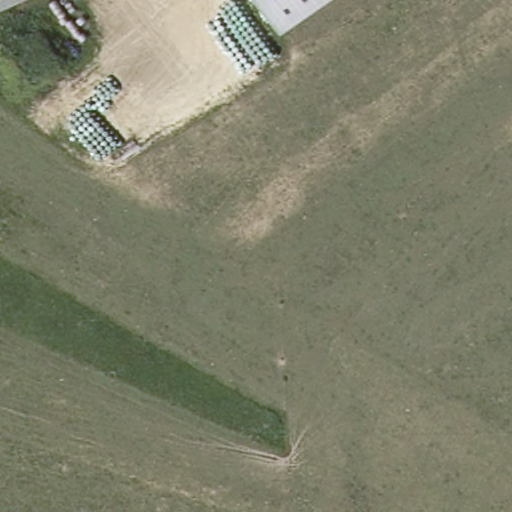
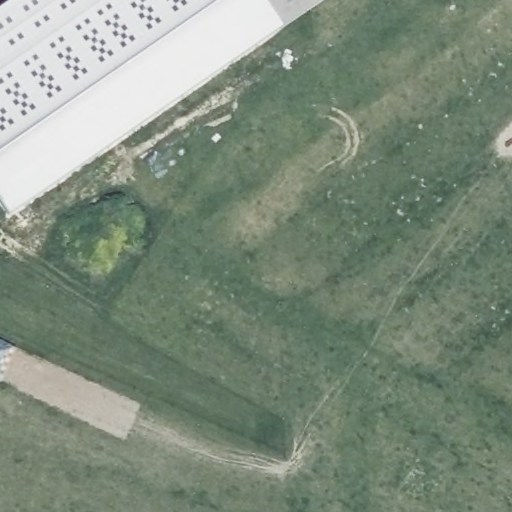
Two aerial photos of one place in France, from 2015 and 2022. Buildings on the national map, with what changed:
new [(10,222),(0,206),(0,8),(11,0),(264,0),(284,29),(10,222)]
unchanged [(264,0),(326,0),(284,29),(264,0)]

